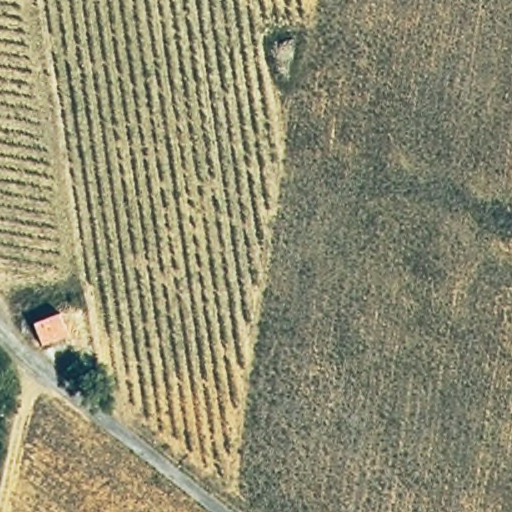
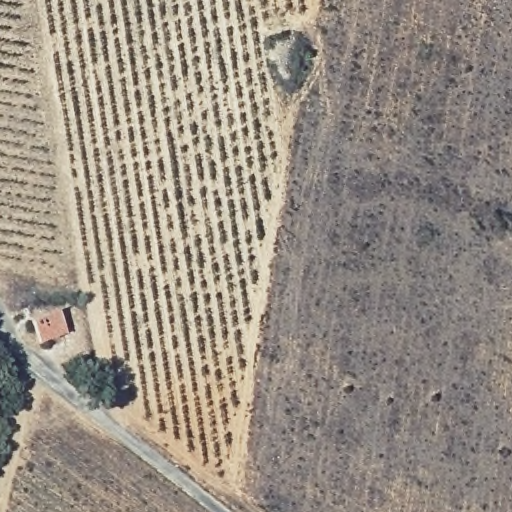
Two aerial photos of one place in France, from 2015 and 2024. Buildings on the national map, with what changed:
unchanged [(61,312),(69,333),(40,343),(32,320),(61,312)]

